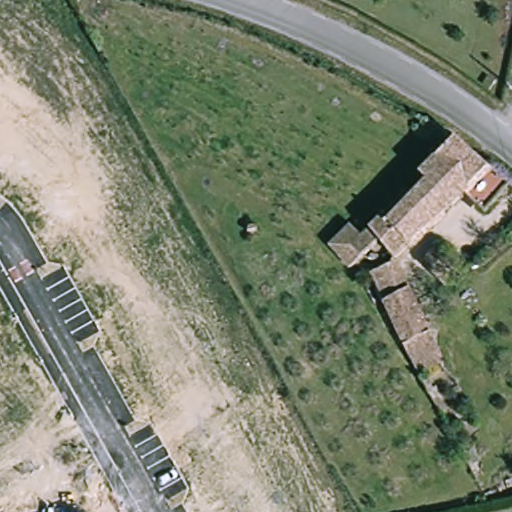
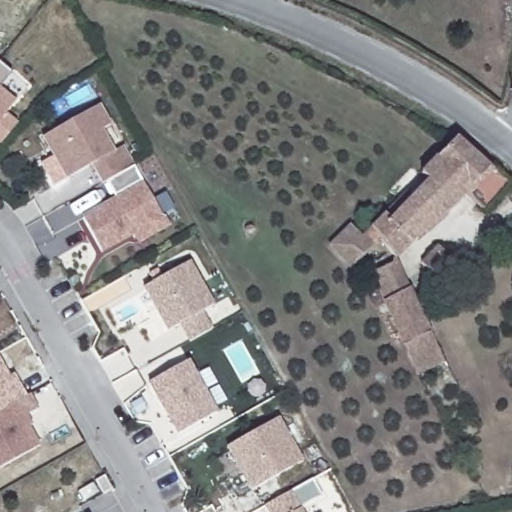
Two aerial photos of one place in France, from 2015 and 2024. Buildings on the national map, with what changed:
new [(0,86),(0,63),(11,72),(0,86)]
new [(0,143),(0,89),(15,101),(4,114),(16,124),(0,144),(0,143)]
new [(109,127),(111,126),(123,146),(121,147),(132,167),(101,184),(90,165),(65,179),(42,138),(98,107),(109,127)]
unchanged [(462,192),(397,261),(377,244),(349,271),(326,249),(346,227),(356,237),(402,192),(408,197),(422,184),(419,181),(415,186),(407,177),(419,164),(424,169),(454,144),(486,165),(462,192)]
unchanged [(484,212),(462,192),(486,165),(510,185),(484,212)]
new [(162,217),(165,216),(171,226),(138,244),(134,236),(101,253),(80,216),(113,196),(106,182),(132,167),(162,217)]
unchanged [(466,267),(448,286),(427,260),(443,246),(466,267)]
new [(191,260),(216,304),(203,311),(213,329),(188,342),(180,325),(168,332),(143,287),(191,260)]
unchanged [(421,371),(387,301),(372,272),(395,264),(406,292),(413,288),(448,357),(421,371)]
new [(14,373),(26,395),(0,410),(0,359),(9,376),(14,373)]
new [(188,360),(217,412),(178,433),(149,382),(188,360)]
new [(40,408),(25,417),(41,446),(0,468),(0,410),(30,392),(40,408)]
new [(279,416),(304,460),(251,491),(226,447),(279,416)]
unchanged [(290,491),(302,512),(266,512),(263,507),(290,491)]

